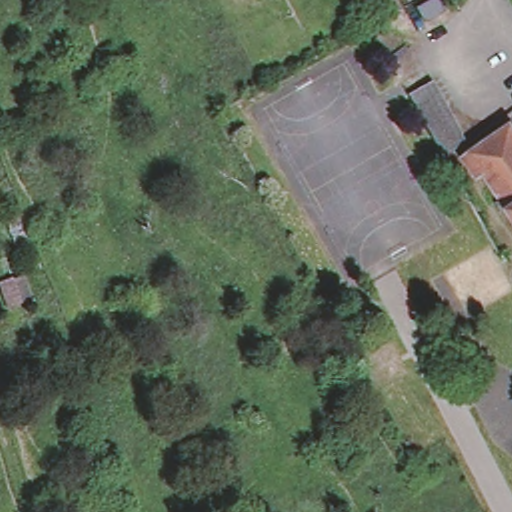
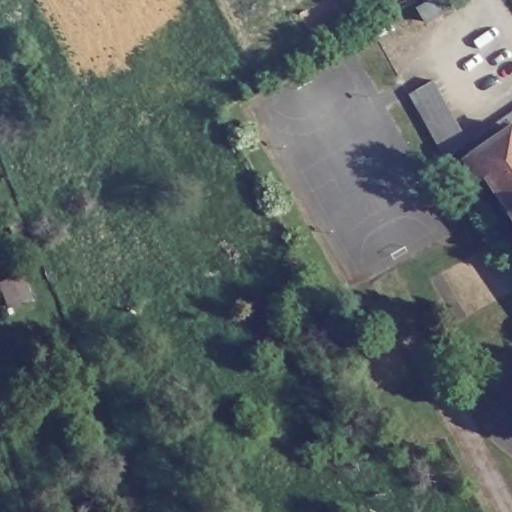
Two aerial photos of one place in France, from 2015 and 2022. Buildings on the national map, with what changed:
unchanged [(432,0),(437,0),(443,10),(426,20),(419,7),(432,0)]
unchanged [(437,139),(430,128),(423,116),(416,103),(409,91),(434,77),(441,89),(447,101),(454,114),(461,125),(468,138),(445,154),(437,139)]
unchanged [(512,132),(512,220),(481,174),(473,178),(458,157),(506,124),(512,132)]

